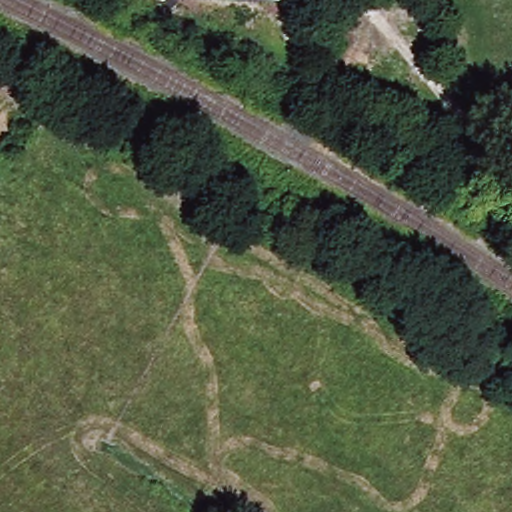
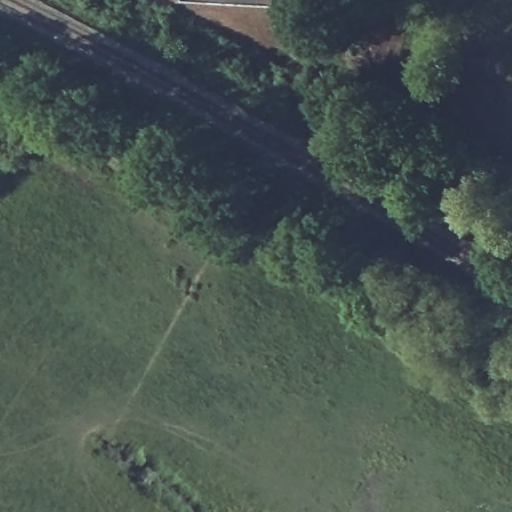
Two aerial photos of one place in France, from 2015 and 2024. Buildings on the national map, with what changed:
unchanged [(187,0),(279,0),(278,6),(186,2),(187,0)]

